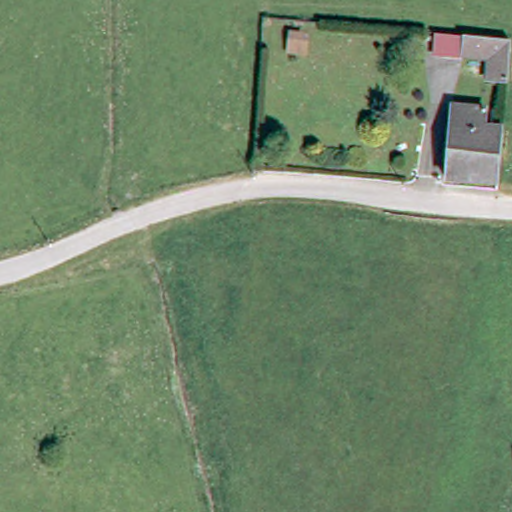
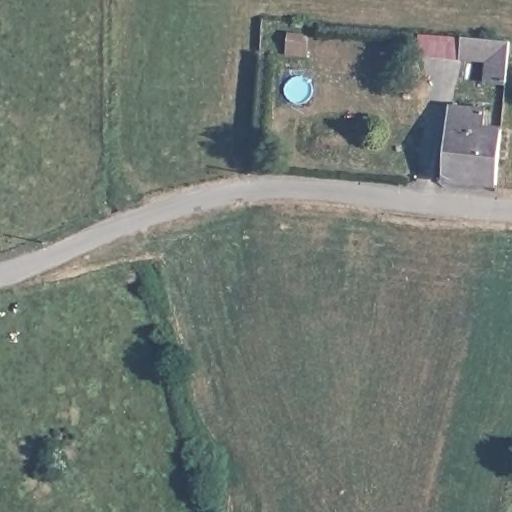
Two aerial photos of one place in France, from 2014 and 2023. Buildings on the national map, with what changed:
unchanged [(505,81),(486,81),(487,59),(461,58),(463,38),(491,40),(507,41),(505,81)]
unchanged [(442,174),(446,127),(447,109),(481,111),(480,129),(498,130),(493,187),(441,183),(442,174)]

